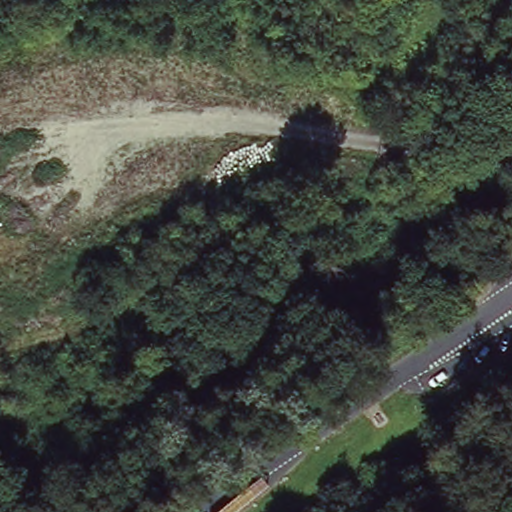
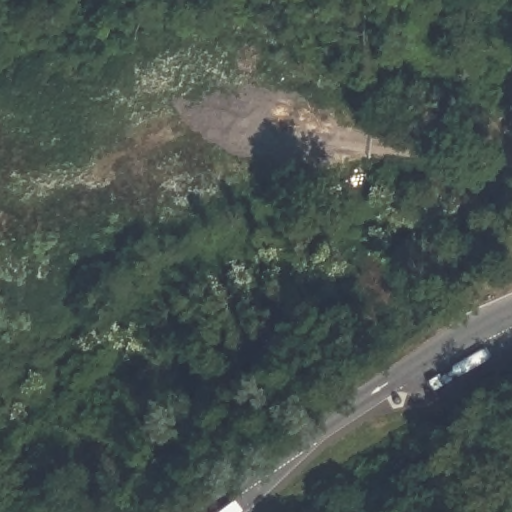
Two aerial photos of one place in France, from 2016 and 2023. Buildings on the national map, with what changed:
[]

